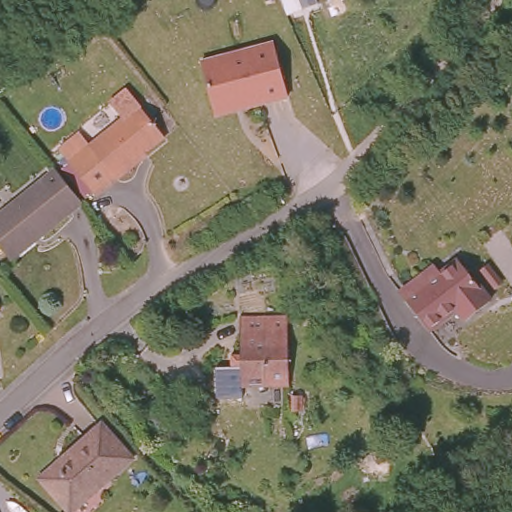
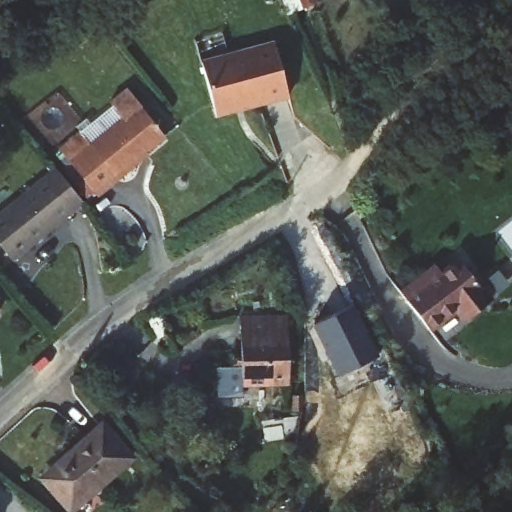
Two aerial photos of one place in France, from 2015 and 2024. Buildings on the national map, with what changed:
unchanged [(229,50),(231,55),(277,41),(278,41),(292,89),(252,100),(251,96),(218,105),(204,57),(229,50)]
unchanged [(79,128),(92,141),(137,101),(163,131),(139,152),(143,155),(98,193),(57,146),(79,128)]
unchanged [(0,248),(0,219),(55,176),(82,208),(11,263),(0,248)]
unchanged [(495,296),(471,314),(462,302),(434,322),(412,294),(406,285),(440,260),(447,268),(464,255),(495,296)]
new [(379,356),(338,376),(313,326),(354,305),(379,356)]
unchanged [(2,311),(0,313),(0,309),(2,311)]
unchanged [(239,324),(285,326),(284,382),(236,381),(239,324)]
unchanged [(104,425),(133,459),(72,511),(42,479),(104,425)]

